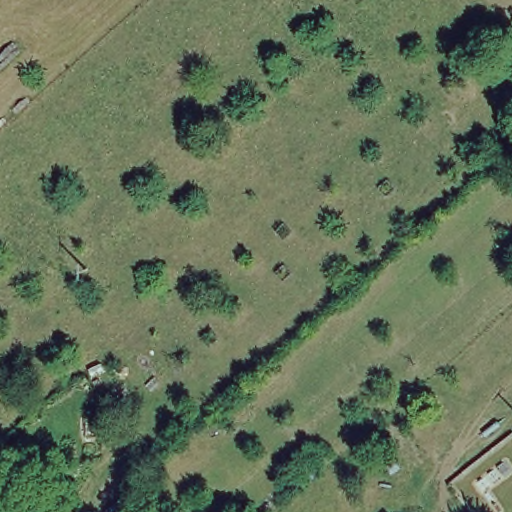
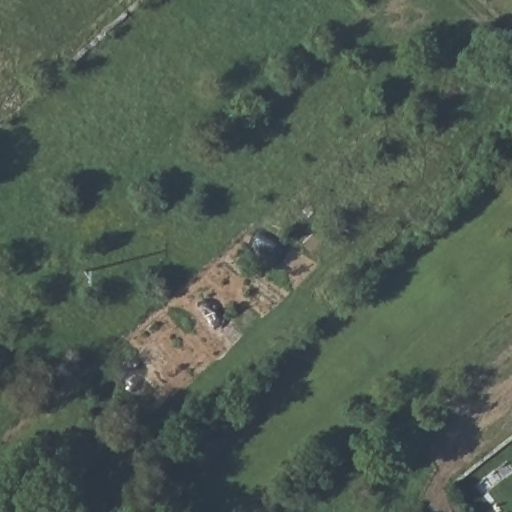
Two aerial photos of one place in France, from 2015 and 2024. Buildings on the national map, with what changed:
unchanged [(72,512),(36,512),(53,492),(72,512)]

